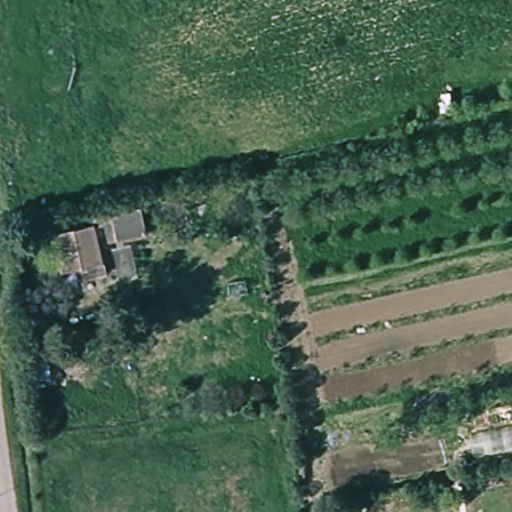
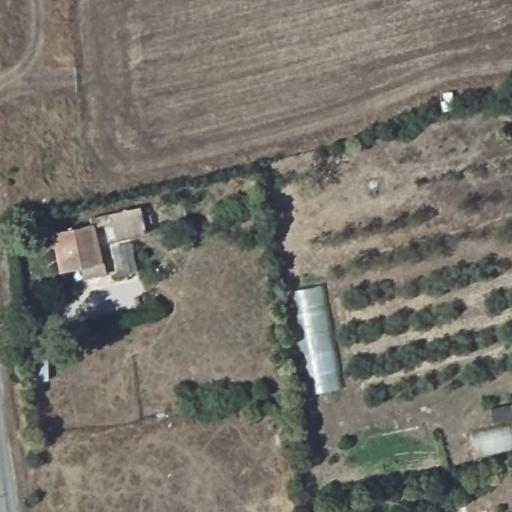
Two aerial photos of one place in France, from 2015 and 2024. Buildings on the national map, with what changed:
unchanged [(453,112),(442,115),(439,101),(451,99),(453,112)]
unchanged [(112,278),(90,283),(88,272),(65,277),(56,239),(94,230),(93,225),(144,212),(150,237),(112,246),(108,230),(98,232),(106,267),(110,267),(112,278)]
new [(344,390),(312,396),(293,292),(325,285),(344,390)]

